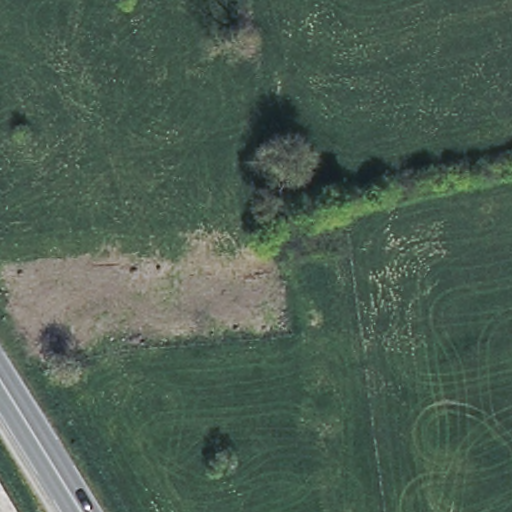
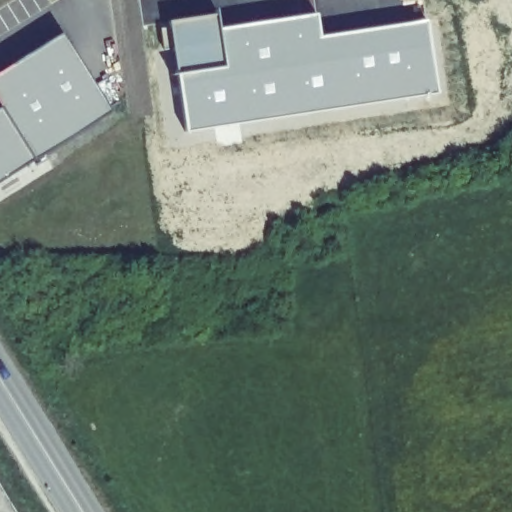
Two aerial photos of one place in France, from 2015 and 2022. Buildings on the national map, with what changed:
new [(220,16),(223,30),(319,16),(322,37),(430,22),(441,93),(189,132),(172,22),(220,16)]
new [(64,33),(112,111),(0,183),(0,109),(4,107),(0,102),(0,74),(64,33)]

